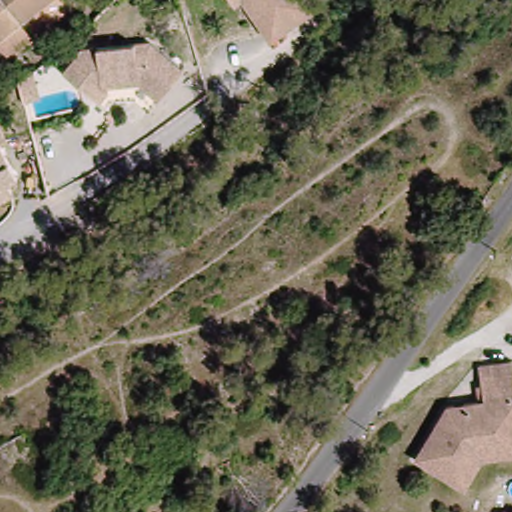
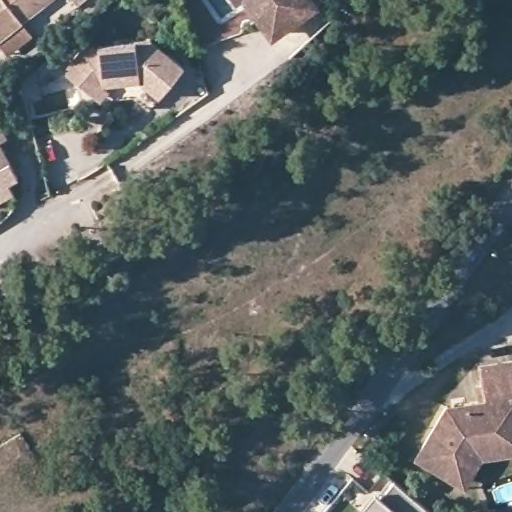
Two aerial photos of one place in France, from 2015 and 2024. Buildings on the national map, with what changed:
unchanged [(0,54),(0,0),(40,0),(17,19),(29,33),(2,56),(0,54)]
unchanged [(74,2),(72,0),(77,0),(74,2)]
unchanged [(243,2),(242,0),(247,0),(243,2)]
unchanged [(279,37),(274,29),(257,0),(313,0),(315,4),(320,12),(279,37)]
unchanged [(139,85),(103,86),(93,97),(65,70),(86,47),(153,44),(184,74),(158,102),(139,85)]
unchanged [(103,86),(139,85),(158,102),(147,115),(133,100),(111,101),(105,108),(93,97),(103,86)]
unchanged [(0,146),(0,134),(5,144),(0,146)]
unchanged [(5,188),(10,198),(0,203),(0,155),(14,184),(5,188)]
unchanged [(416,460),(448,407),(479,403),(476,383),(482,383),(479,364),(512,360),(512,456),(484,461),(466,490),(416,460)]
new [(381,499),(394,481),(430,512),(360,512),(375,494),(381,499)]

